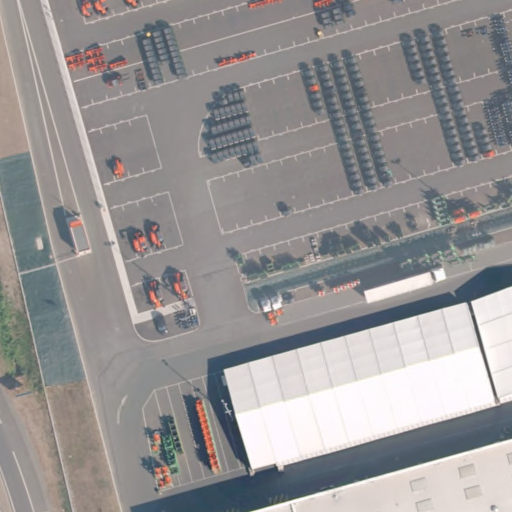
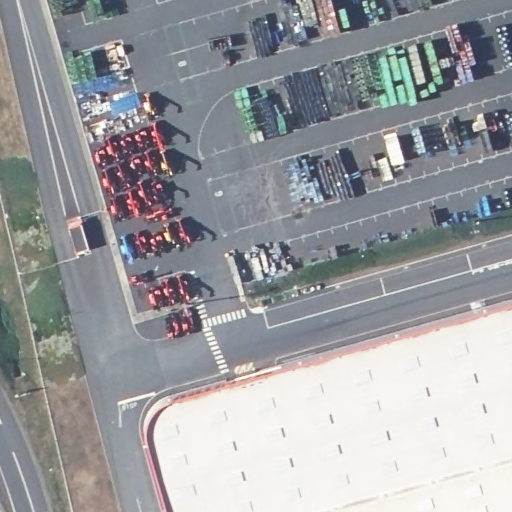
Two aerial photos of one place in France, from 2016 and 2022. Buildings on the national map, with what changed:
new [(81,221),(89,247),(76,250),(69,224),(81,221)]
new [(296,512),(163,512),(141,430),(143,419),(146,411),(151,403),(160,396),(168,393),(512,295),(512,451),(296,512)]
unchanged [(296,512),(512,451),(512,512),(296,512)]

